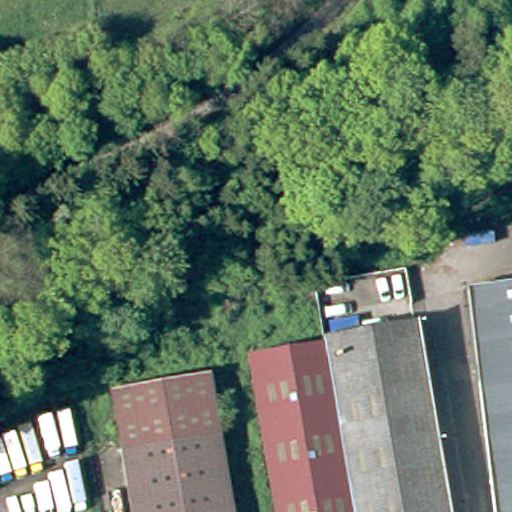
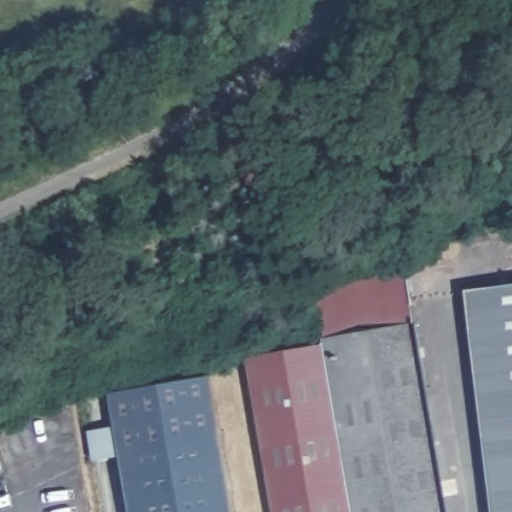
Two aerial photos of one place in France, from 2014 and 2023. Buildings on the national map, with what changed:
unchanged [(468,291),(512,286),(512,512),(494,512),(468,291)]
unchanged [(447,512),(355,512),(327,346),(326,341),(415,326),(447,512)]
unchanged [(250,359),(327,346),(355,512),(277,512),(250,359)]
unchanged [(112,390),(211,374),(235,512),(133,512),(112,390)]

